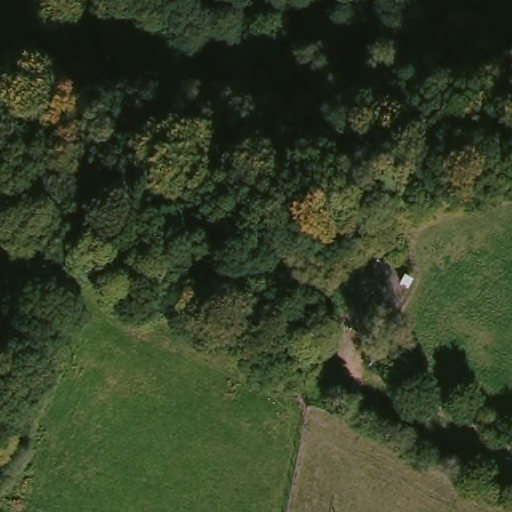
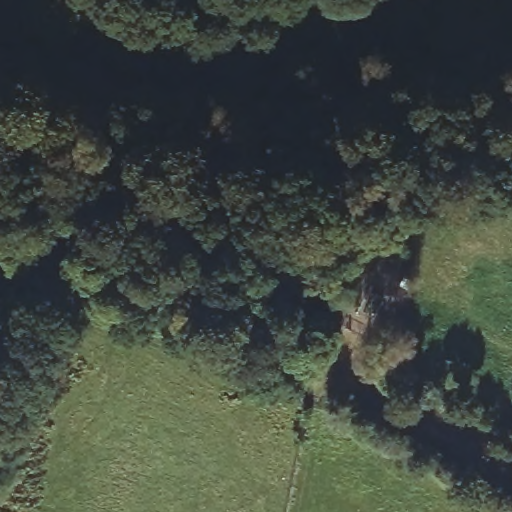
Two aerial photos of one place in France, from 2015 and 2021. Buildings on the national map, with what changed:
[]

